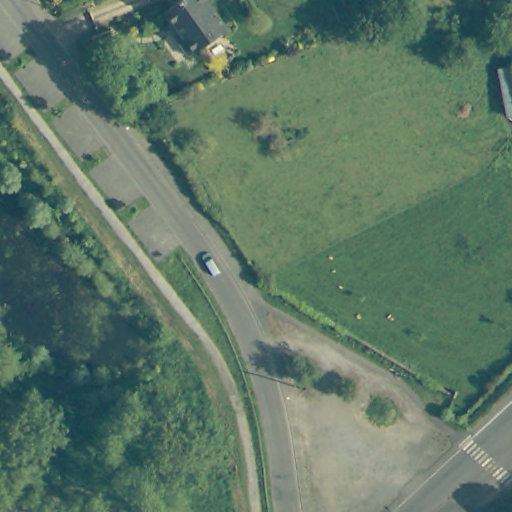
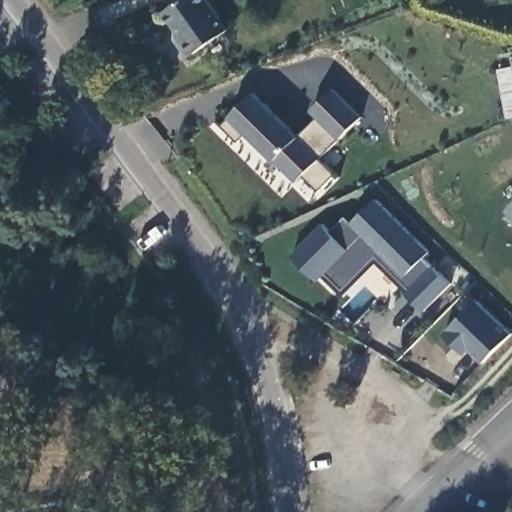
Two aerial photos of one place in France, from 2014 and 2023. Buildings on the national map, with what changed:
unchanged [(188,56),(175,36),(178,26),(167,10),(181,0),(209,0),(228,31),(191,55),(191,54),(188,56)]
unchanged [(391,14),(388,5),(398,1),(401,10),(391,14)]
unchanged [(512,67),(512,119),(501,121),(490,70),(512,67)]
new [(316,118),(310,111),(332,89),(361,117),(319,159),(335,174),(320,190),(303,176),(298,182),(273,159),(273,158),(230,117),(255,93),(298,134),(316,118)]
new [(320,282),(292,255),(323,224),(330,230),(346,217),(352,223),(375,199),(429,252),(422,258),(451,284),(425,312),(377,264),(343,296),(324,278),(320,282)]
new [(512,205),(512,215),(507,211),(512,205)]
new [(512,331),(512,337),(487,362),(473,349),(469,354),(448,333),(481,300),(512,331)]

